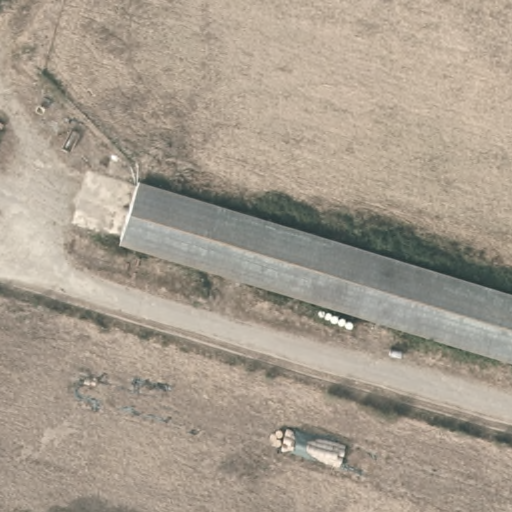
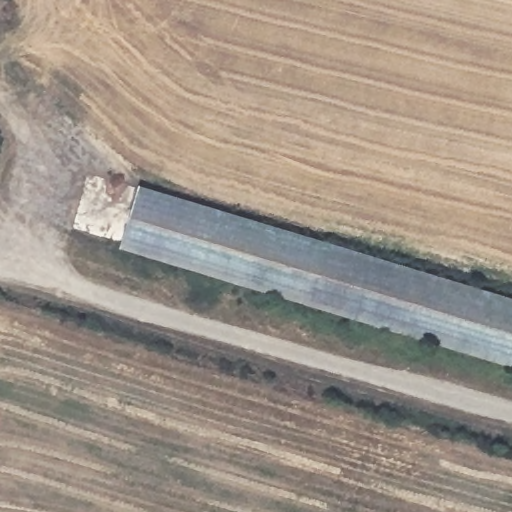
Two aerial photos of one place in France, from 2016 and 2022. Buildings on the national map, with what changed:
unchanged [(132,185),(512,302),(512,356),(118,237),(132,185)]

